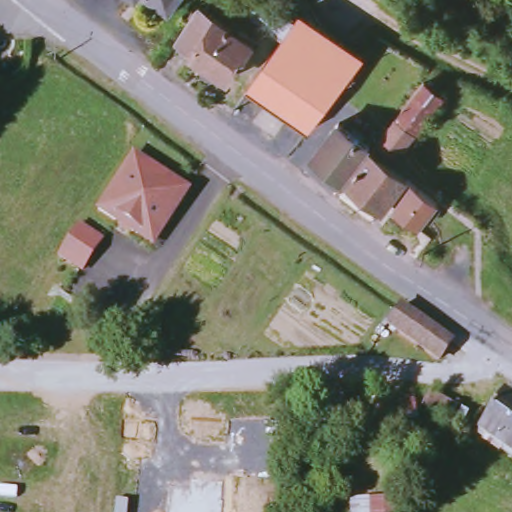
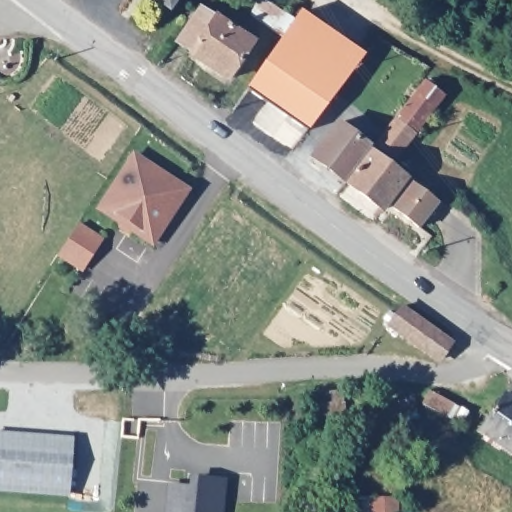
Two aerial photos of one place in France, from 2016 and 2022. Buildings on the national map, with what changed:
unchanged [(171,10),(158,0),(179,0),(171,10)]
unchanged [(230,84),(193,60),(175,48),(199,9),(216,21),(253,46),(230,84)]
unchanged [(307,13),(365,55),(312,130),(255,85),(307,13)]
unchanged [(431,220),(425,230),(399,213),(404,206),(397,201),(388,215),(347,188),(425,86),(444,99),(393,170),(432,196),(443,203),(431,220)]
unchanged [(315,164),(340,130),(373,153),(347,188),(315,164)]
unchanged [(103,209),(135,161),(138,155),(150,163),(180,182),(192,191),(189,196),(166,231),(157,244),(152,241),(103,209)]
unchanged [(105,240),(86,270),(62,254),(67,247),(82,224),(105,240)]
unchanged [(454,347),(440,365),(390,331),(404,312),(454,347)]
unchanged [(507,396),(512,399),(512,454),(483,433),(507,396)]
new [(70,435),(65,489),(0,485),(0,431),(70,435)]
new [(187,482),(187,473),(217,476),(216,494),(218,495),(216,512),(163,512),(166,480),(187,482)]
unchanged [(354,512),(353,501),(405,503),(405,512),(354,512)]

